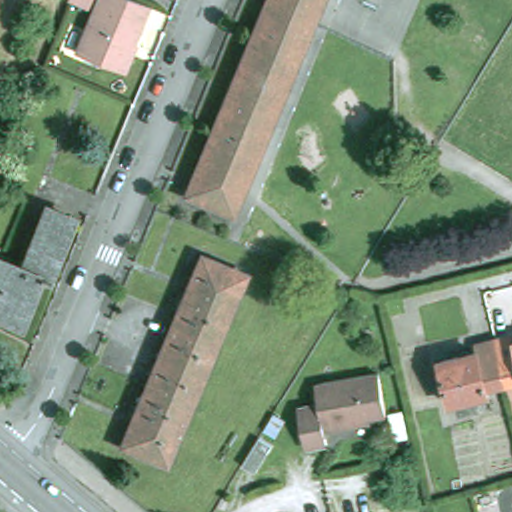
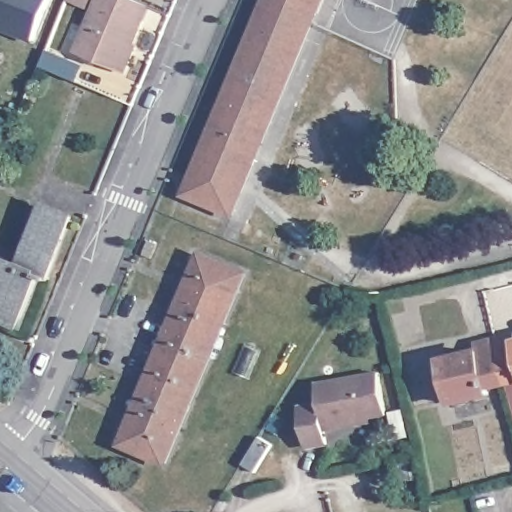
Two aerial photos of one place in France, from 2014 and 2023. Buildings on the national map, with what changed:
new [(0,31),(0,0),(51,0),(34,43),(0,31)]
unchanged [(82,51),(104,0),(145,0),(154,3),(126,69),(82,51)]
unchanged [(87,0),(92,0),(92,2),(87,0)]
unchanged [(269,3),(270,0),(327,0),(317,25),(269,3)]
unchanged [(317,25),(238,214),(190,193),(269,3),(317,25)]
unchanged [(0,252),(26,262),(51,199),(75,210),(49,272),(35,266),(15,315),(0,309),(0,252)]
unchanged [(199,253),(245,273),(165,462),(120,444),(199,253)]
unchanged [(512,335),(512,378),(502,337),(512,335)]
unchanged [(492,387),(493,394),(457,402),(446,358),(482,349),(481,342),(502,337),(512,378),(512,382),(492,387)]
unchanged [(390,418),(328,428),(330,443),(305,445),(300,403),(320,401),(318,382),(384,372),(390,418)]

